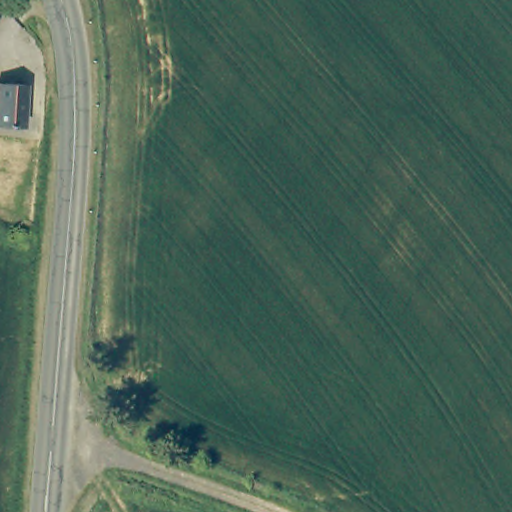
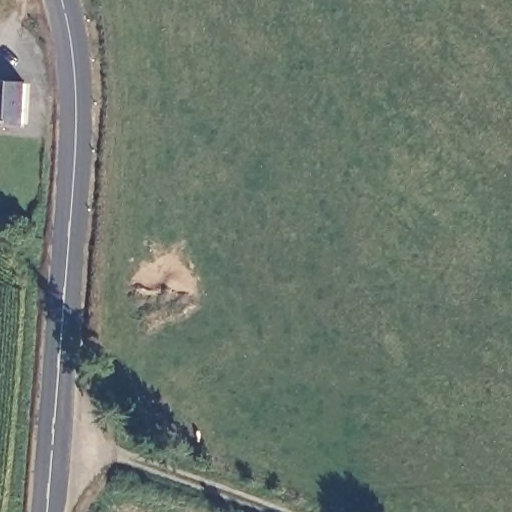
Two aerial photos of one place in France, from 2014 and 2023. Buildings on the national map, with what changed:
unchanged [(24,85),(22,125),(0,124),(0,84),(24,85)]

